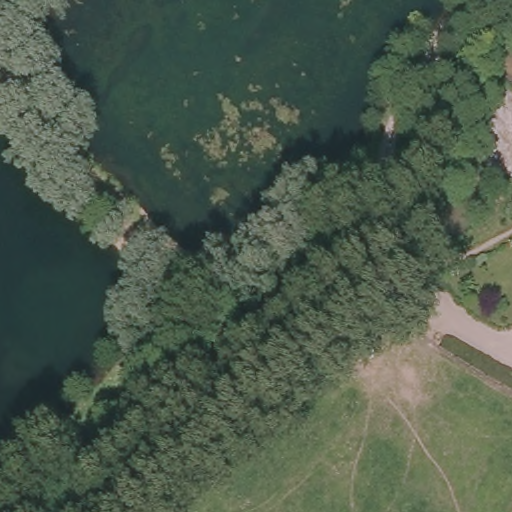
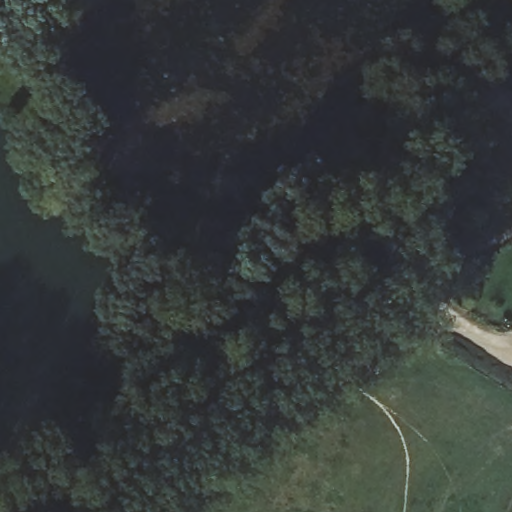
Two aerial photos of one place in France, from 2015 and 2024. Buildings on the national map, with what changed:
[]

